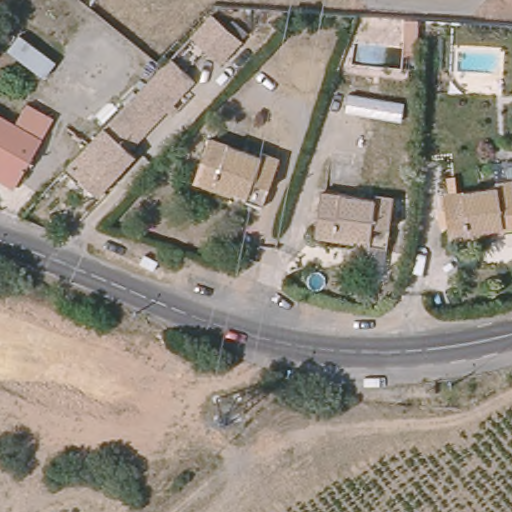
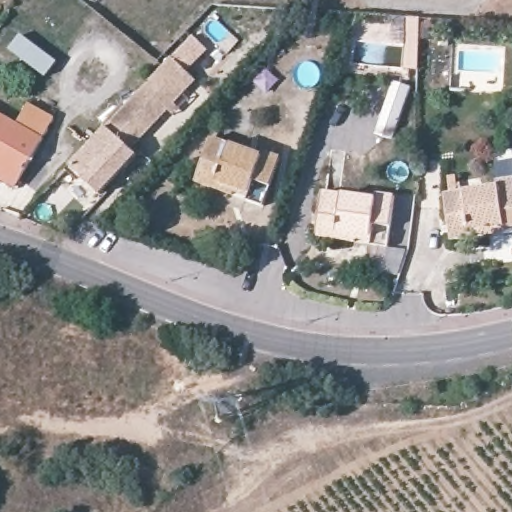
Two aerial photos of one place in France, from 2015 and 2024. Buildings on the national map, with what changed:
unchanged [(211,14),(225,25),(240,40),(220,62),(204,47),(171,83),(158,70),(211,14)]
unchanged [(408,20),(422,19),(420,70),(406,70),(408,20)]
unchanged [(252,47),(250,45),(255,40),(260,45),(255,50),(252,47)]
unchanged [(171,83),(182,93),(136,142),(144,149),(138,155),(135,152),(106,125),(116,114),(158,70),(171,83)]
unchanged [(363,126),(368,95),(384,94),(386,78),(405,80),(398,132),(378,130),(363,126)]
unchanged [(20,121),(32,101),(57,117),(16,185),(0,175),(0,109),(20,121)]
unchanged [(116,185),(104,199),(102,196),(73,170),(62,181),(57,176),(106,125),(135,152),(121,167),(128,172),(116,185)]
unchanged [(200,167),(210,139),(260,156),(262,152),(280,157),(262,207),(245,201),(195,181),(200,167)]
unchanged [(444,193),(497,185),(497,180),(512,177),(512,232),(505,232),(450,240),(447,224),(444,193)]
unchanged [(317,216),(323,185),(375,195),(375,190),(395,193),(386,245),(367,242),(314,231),(317,216)]

